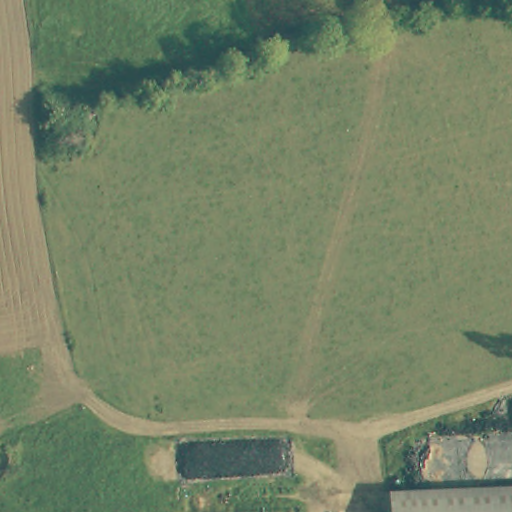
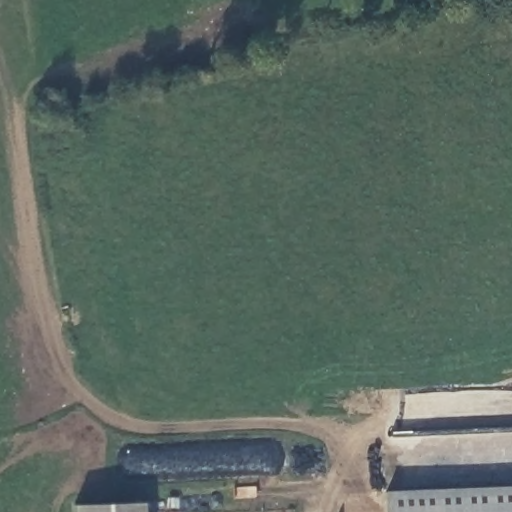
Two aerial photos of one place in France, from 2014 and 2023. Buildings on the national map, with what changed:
unchanged [(386,496),(512,490),(512,512),(386,512),(386,496)]
new [(145,501),(145,512),(74,512),(74,504),(145,501)]

